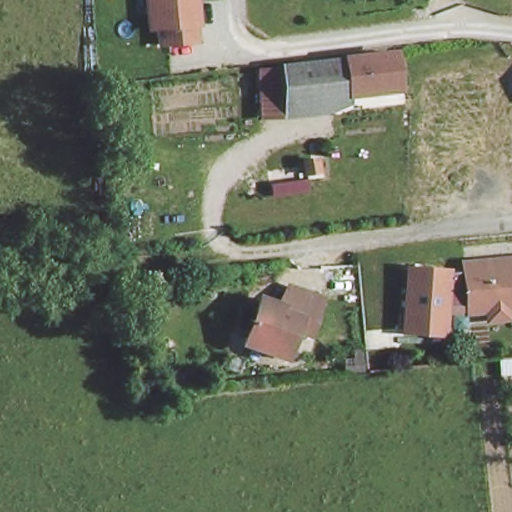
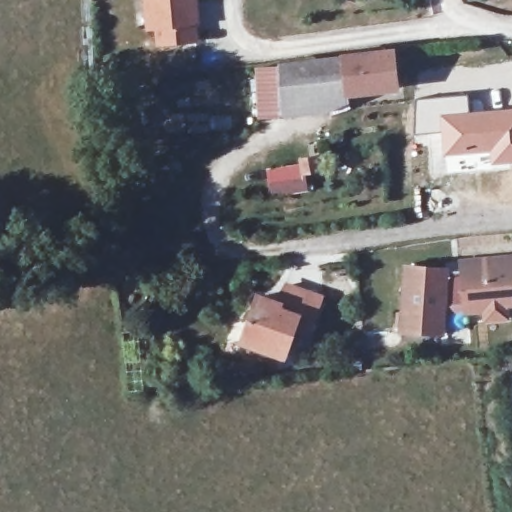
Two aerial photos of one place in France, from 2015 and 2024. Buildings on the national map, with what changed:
unchanged [(144,38),(141,0),(196,0),(198,36),(144,38)]
unchanged [(390,54),(394,86),(342,91),(330,103),(283,107),(283,114),(262,116),(259,67),(390,54)]
demolished [(427,118),(423,86),(512,73),(512,107),(427,118)]
new [(468,94),(470,111),(439,114),(439,135),(415,136),(415,99),(468,94)]
new [(439,114),(470,111),(512,108),(512,163),(490,165),(489,154),(442,158),(439,135),(439,114)]
unchanged [(402,331),(407,267),(447,270),(447,272),(464,271),(463,268),(512,263),(512,302),(505,303),(505,309),(467,313),(467,307),(444,308),(442,334),(402,331)]
unchanged [(294,330),(287,357),(243,344),(258,299),(281,306),(289,287),(308,293),(322,298),(314,322),(311,333),(294,330)]

